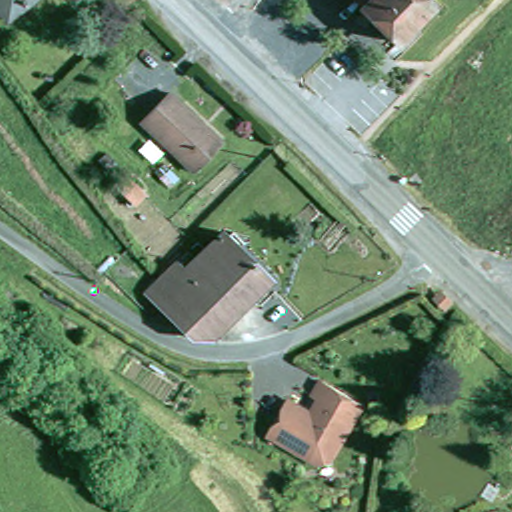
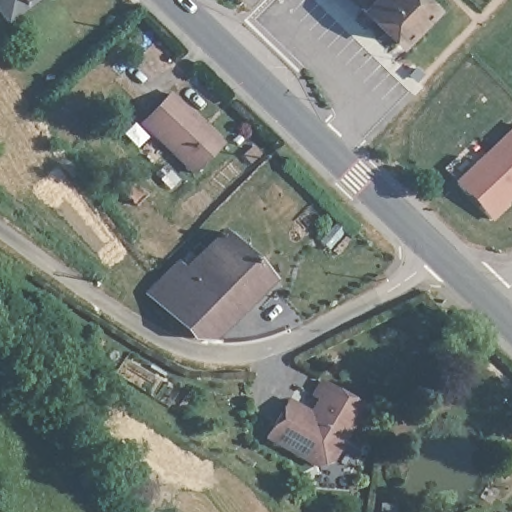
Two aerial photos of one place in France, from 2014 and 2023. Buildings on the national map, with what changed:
unchanged [(0,4),(0,0),(37,0),(12,20),(0,4)]
unchanged [(365,0),(428,0),(435,6),(398,45),(360,6),(366,1),(365,0)]
unchanged [(144,129),(173,97),(225,145),(195,177),(144,129)]
new [(504,201),(506,205),(491,218),(458,183),(512,131),(512,193),(504,201)]
unchanged [(219,229),(273,282),(234,326),(178,273),(219,229)]
unchanged [(219,342),(204,345),(151,295),(175,270),(178,273),(234,326),(219,342)]
unchanged [(315,405),(324,388),(367,413),(340,464),(326,472),(274,444),(293,409),(319,424),(326,413),(315,405)]

